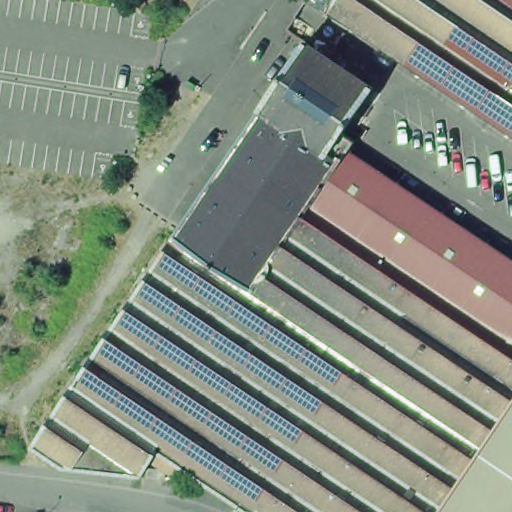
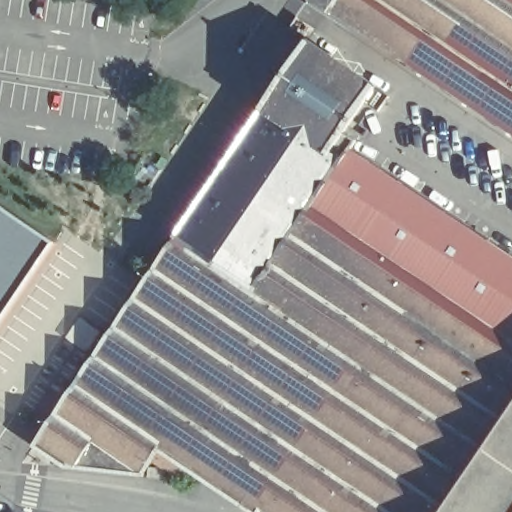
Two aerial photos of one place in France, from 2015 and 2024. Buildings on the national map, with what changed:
unchanged [(300,0),(512,0),(512,139),(299,2),(300,0)]
unchanged [(244,512),(241,512),(152,453),(132,477),(59,471),(27,445),(170,237),(253,111),(303,44),(371,87),(341,150),(512,261),(512,512),(252,512),(247,508),(244,512)]
new [(46,246),(0,313),(0,213),(46,246)]
unchanged [(166,477),(148,477),(149,467),(167,468),(166,477)]

